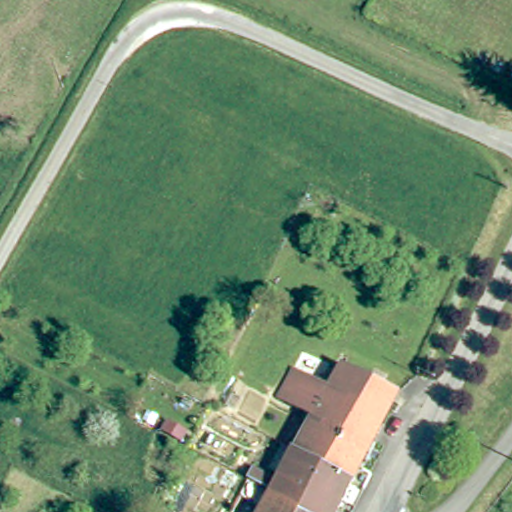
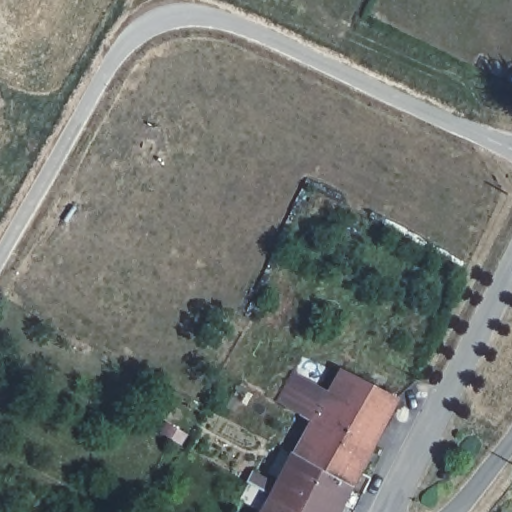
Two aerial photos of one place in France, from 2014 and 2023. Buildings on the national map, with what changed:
unchanged [(283,411),(300,382),(334,402),(347,378),(402,403),(357,491),(300,460),(317,430),(283,411)]
unchanged [(345,512),(292,512),(255,491),(260,482),(281,494),(300,460),(357,491),(345,512)]
unchanged [(255,491),(292,512),(249,512),(244,508),(255,491)]

